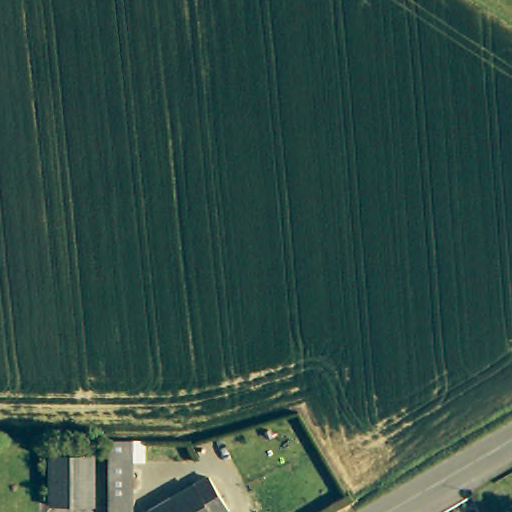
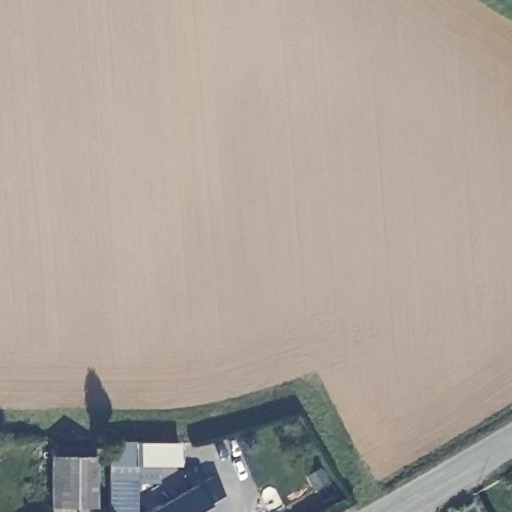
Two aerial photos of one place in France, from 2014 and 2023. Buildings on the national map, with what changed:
unchanged [(132,487),(132,512),(108,512),(109,437),(142,437),(141,487),(132,487)]
unchanged [(94,501),(52,500),(52,442),(92,441),(94,501)]
unchanged [(179,443),(179,465),(158,465),(157,483),(141,482),(142,442),(179,443)]
unchanged [(229,512),(150,512),(209,477),(229,512)]

